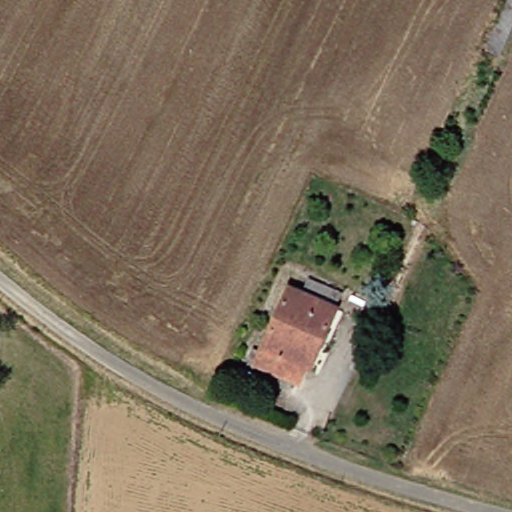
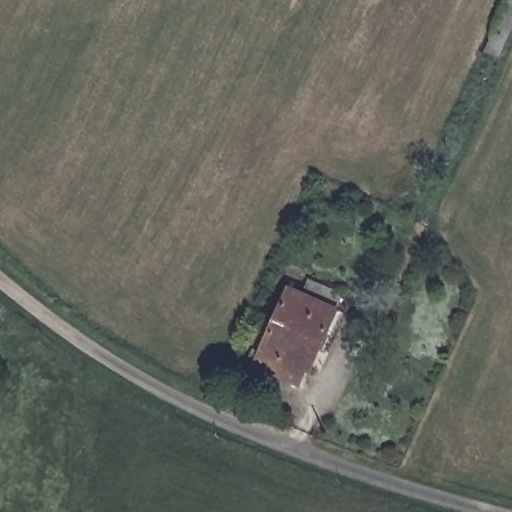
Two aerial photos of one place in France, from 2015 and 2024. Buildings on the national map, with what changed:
unchanged [(507,0),(512,0),(512,23),(498,55),(486,50),(507,0)]
unchanged [(314,371),(311,370),(304,385),(261,365),(262,362),(254,358),(259,349),(266,352),(295,289),(308,294),(315,280),(349,296),(314,371)]
unchanged [(267,378),(260,394),(238,384),(245,369),(267,378)]

